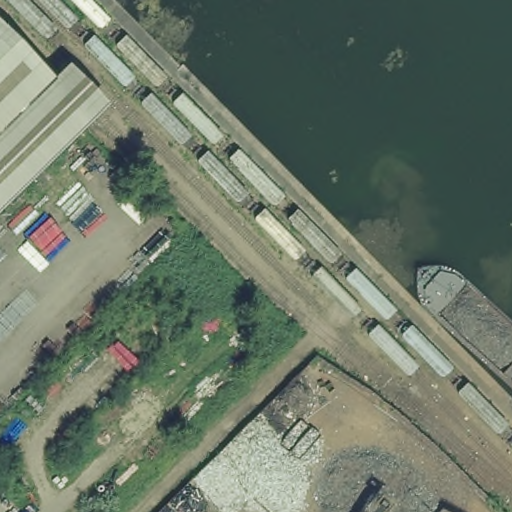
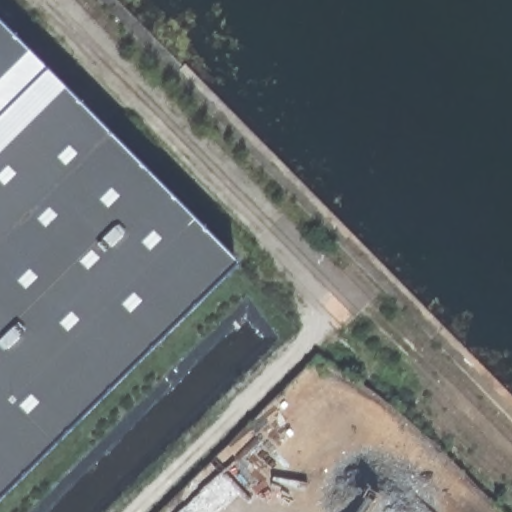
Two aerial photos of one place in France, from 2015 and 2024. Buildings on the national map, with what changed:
demolished [(0,205),(0,11),(99,106),(0,205)]
new [(0,495),(0,29),(234,265),(0,495)]

